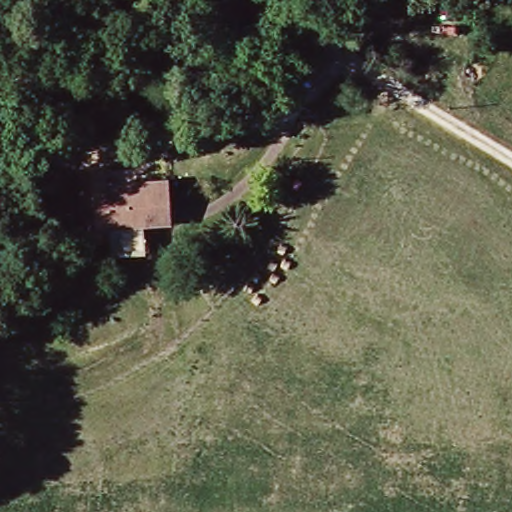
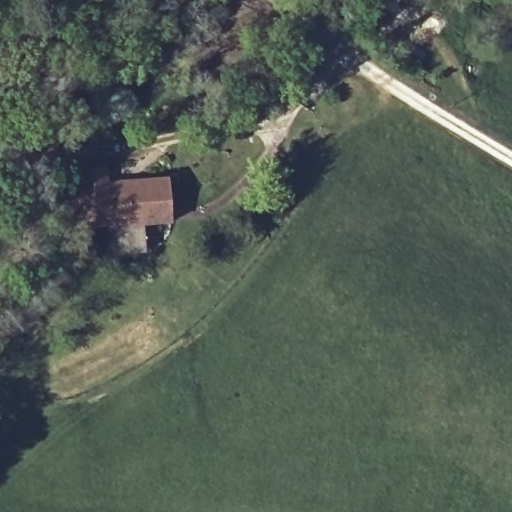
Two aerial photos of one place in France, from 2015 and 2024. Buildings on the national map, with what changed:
unchanged [(105,189),(136,186),(169,185),(172,227),(108,232),(105,195),(105,189)]

